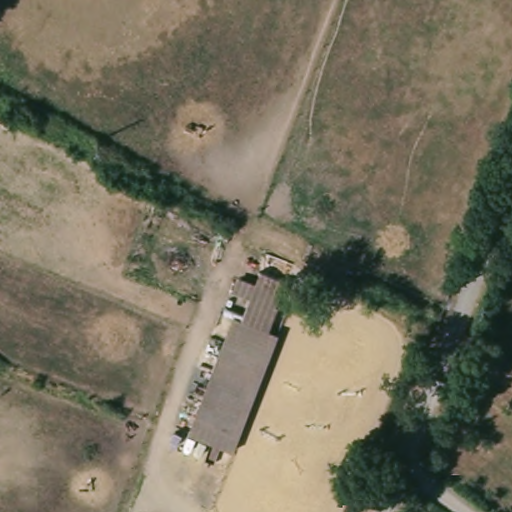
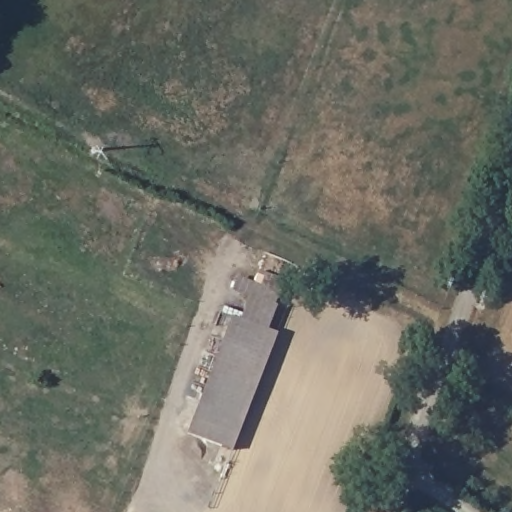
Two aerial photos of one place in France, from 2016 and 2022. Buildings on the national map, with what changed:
unchanged [(235,313),(244,315),(251,294),(236,287),(242,276),(271,288),(276,276),(287,280),(268,329),(277,332),(231,449),(186,429),(235,313)]

